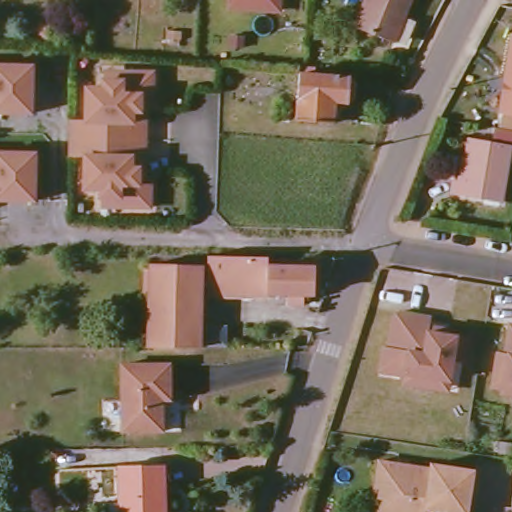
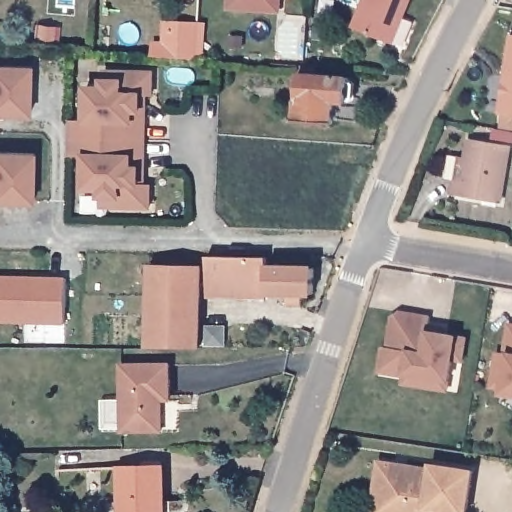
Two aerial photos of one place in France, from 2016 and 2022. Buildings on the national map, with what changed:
unchanged [(227,0),(277,0),(276,10),(226,6),(227,0)]
unchanged [(365,0),(409,0),(392,46),(354,32),(365,0)]
unchanged [(163,44),(163,35),(178,35),(178,45),(163,44)]
unchanged [(501,112),(504,95),(508,92),(509,87),(506,82),(512,47),(512,115),(501,112)]
unchanged [(34,113),(0,112),(0,65),(36,65),(34,113)]
unchanged [(351,96),(344,102),(331,102),(331,122),(293,121),(298,66),(314,68),(314,77),(341,79),(351,85),(351,96)]
unchanged [(101,86),(101,79),(113,79),(113,69),(151,70),(151,92),(139,92),(138,117),(138,119),(143,119),(143,155),(138,155),(138,181),(149,181),(149,205),(111,204),(111,195),(100,195),(100,189),(84,188),(84,155),(68,155),(68,116),(85,119),(85,116),(85,86),(101,86)]
unchanged [(512,131),(512,141),(494,139),(496,129),(512,131)]
unchanged [(511,145),(501,200),(453,194),(456,178),(451,177),(454,155),(468,156),(472,139),(511,145)]
unchanged [(0,153),(39,152),(39,200),(0,200),(0,191),(0,150),(0,153)]
unchanged [(311,287),(265,287),(265,271),(260,271),(256,278),(249,278),(249,292),(203,291),(197,291),(196,344),(145,343),(148,261),(203,263),(203,254),(264,254),(264,263),(311,263),(311,287)]
new [(68,321),(0,321),(0,275),(69,276),(68,321)]
unchanged [(436,388),(409,384),(410,374),(384,370),(389,347),(392,348),(397,317),(404,312),(436,317),(434,326),(452,329),(451,335),(472,338),(468,361),(458,360),(454,381),(453,391),(436,388)]
unchanged [(507,393),(507,388),(497,387),(502,351),(509,353),(512,336),(512,394),(507,393)]
unchanged [(161,395),(160,425),(119,425),(119,361),(167,362),(168,395),(161,395)]
unchanged [(374,484),(378,459),(429,466),(429,460),(469,466),(464,510),(423,505),(422,511),(421,512),(370,512),(374,484)]
unchanged [(108,494),(120,494),(119,462),(164,462),(163,498),(163,512),(121,512),(121,511),(108,511),(108,494)]

